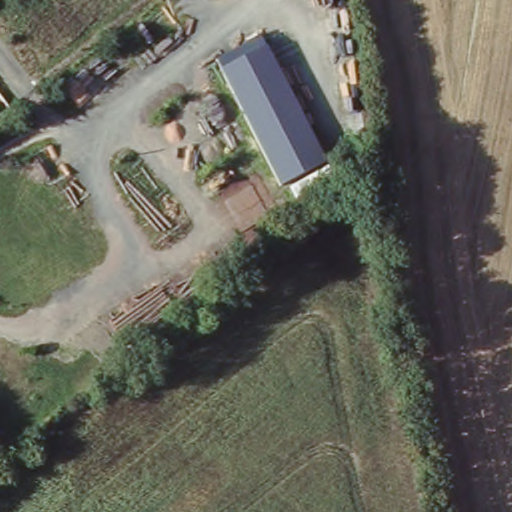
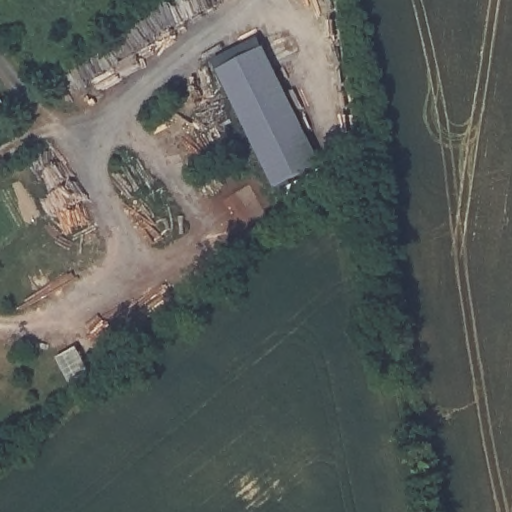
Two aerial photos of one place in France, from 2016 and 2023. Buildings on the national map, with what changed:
unchanged [(261,41),(322,159),(278,180),(216,63),(261,41)]

